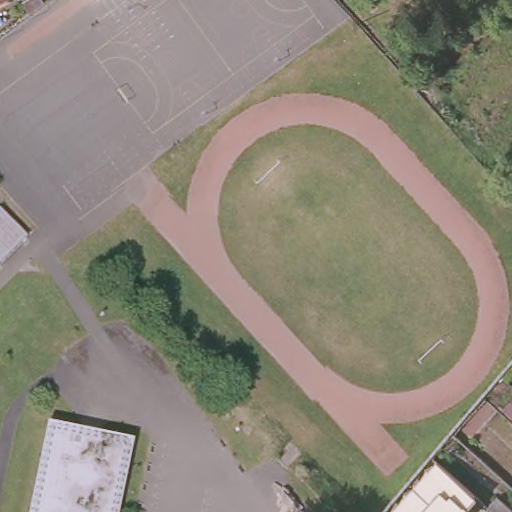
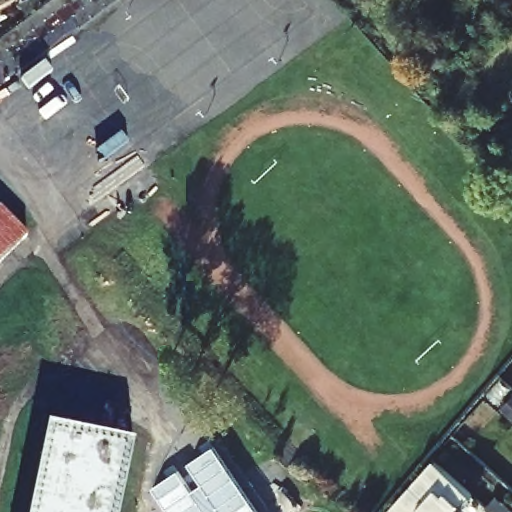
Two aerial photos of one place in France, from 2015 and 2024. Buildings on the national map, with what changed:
unchanged [(0,262),(0,209),(27,236),(0,262)]
unchanged [(127,512),(36,512),(57,423),(143,443),(127,512)]
new [(180,468),(193,490),(203,483),(190,462),(213,447),(257,512),(170,512),(153,486),(180,468)]
unchanged [(454,512),(388,512),(430,464),(466,498),(454,512)]
unchanged [(502,500),(512,509),(512,512),(496,512),(493,510),(502,500)]

